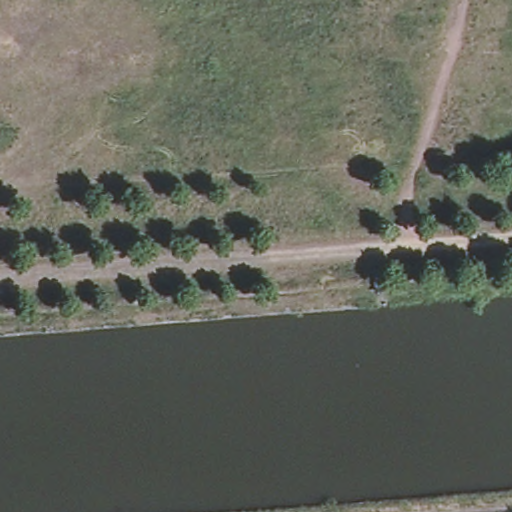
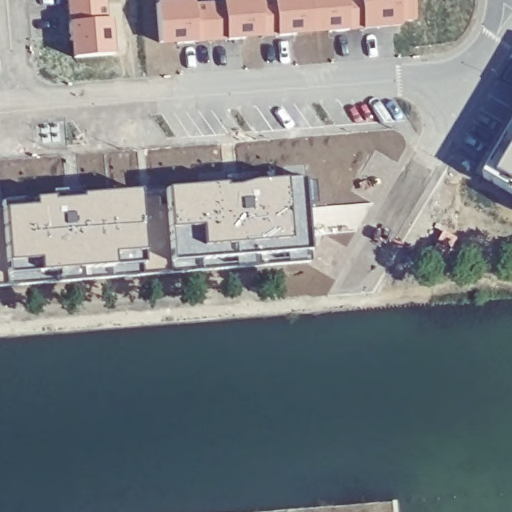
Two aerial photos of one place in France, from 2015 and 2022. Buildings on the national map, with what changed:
new [(109,17),(115,17),(116,52),(74,55),(70,0),(107,0),(109,17)]
new [(169,0),(197,0),(197,3),(227,0),(416,0),(418,21),(164,42),(160,0),(169,0)]
new [(512,119),(512,190),(482,169),(512,119)]
new [(307,177),(317,261),(177,271),(174,185),(307,177)]
new [(144,187),(146,273),(14,284),(8,199),(144,187)]

